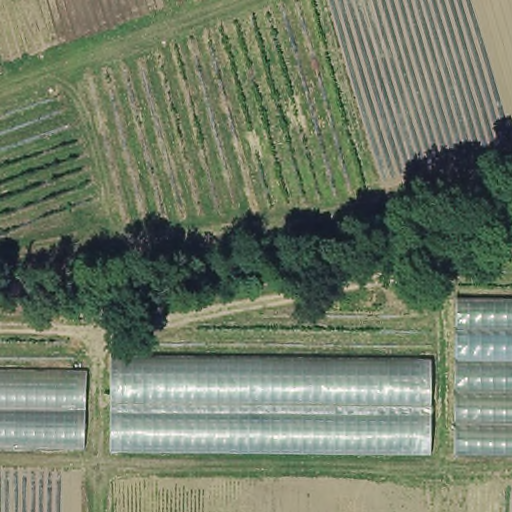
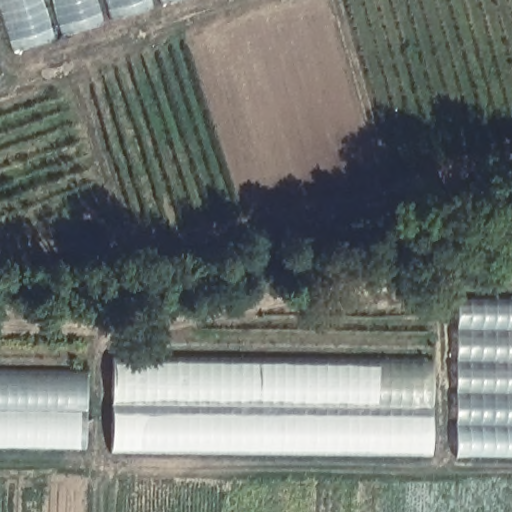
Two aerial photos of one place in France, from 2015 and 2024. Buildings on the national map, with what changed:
new [(14,52),(0,8),(0,0),(175,0),(14,52)]
unchanged [(3,78),(0,79),(0,68),(3,78)]
unchanged [(512,453),(456,452),(458,300),(512,301),(512,453)]
unchanged [(432,453),(108,449),(107,354),(430,356),(432,453)]
unchanged [(84,369),(84,446),(0,446),(0,368),(84,369)]

